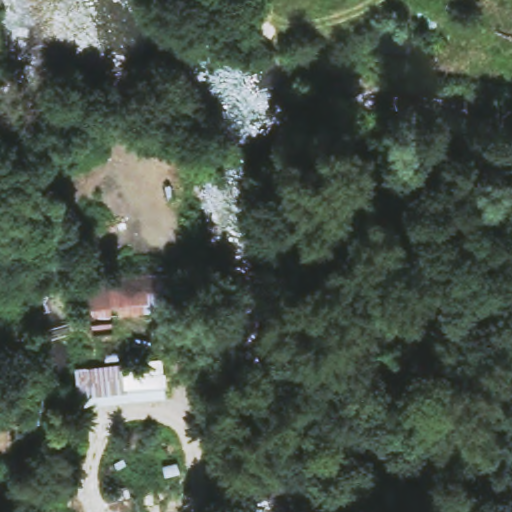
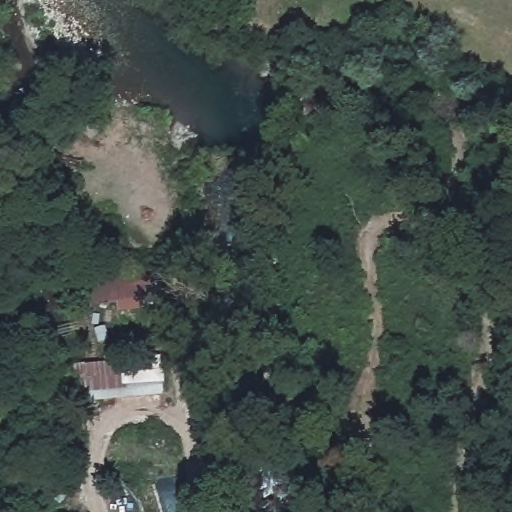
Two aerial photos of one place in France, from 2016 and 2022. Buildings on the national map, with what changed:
unchanged [(85,313),(83,273),(160,266),(163,303),(85,313)]
unchanged [(161,351),(163,387),(76,395),(71,360),(161,351)]

